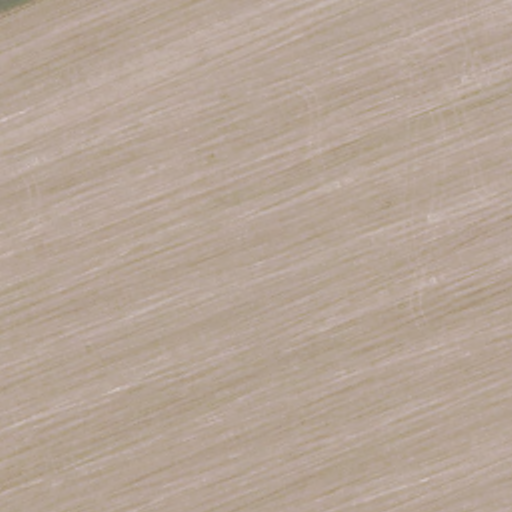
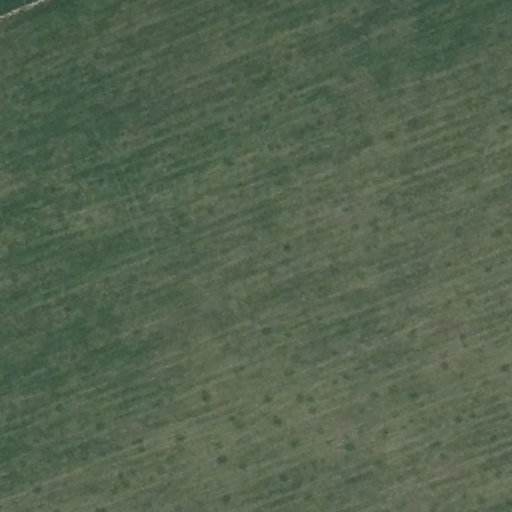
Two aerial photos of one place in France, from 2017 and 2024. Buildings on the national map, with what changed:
[]

